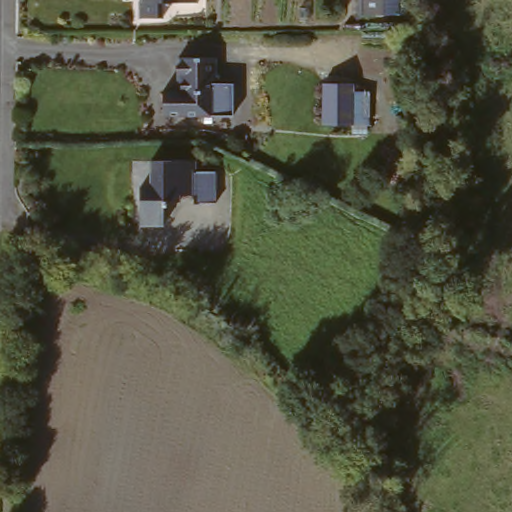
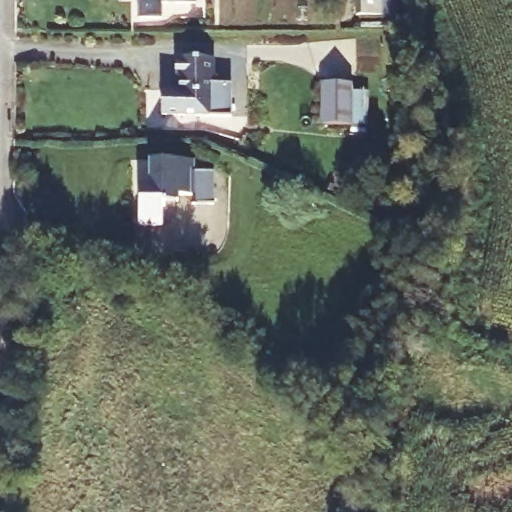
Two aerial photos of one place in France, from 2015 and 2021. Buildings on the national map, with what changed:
unchanged [(203,4),(172,3),(170,14),(147,13),(147,0),(203,0),(203,4)]
unchanged [(394,17),(370,17),(371,0),(394,0),(394,17)]
unchanged [(214,58),(212,84),(230,84),(229,117),(160,115),(160,89),(175,90),(176,57),(214,58)]
unchanged [(365,82),(363,123),(333,122),(335,81),(365,82)]
unchanged [(164,208),(164,228),(137,227),(139,190),(152,191),(153,164),(197,166),(197,179),(217,180),(216,211),(194,210),(194,201),(177,201),(177,209),(164,208)]

